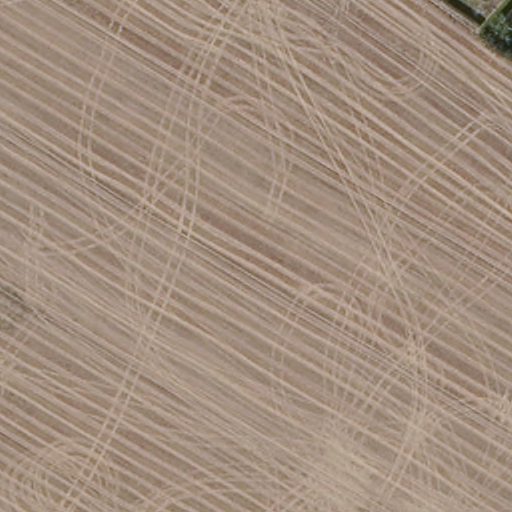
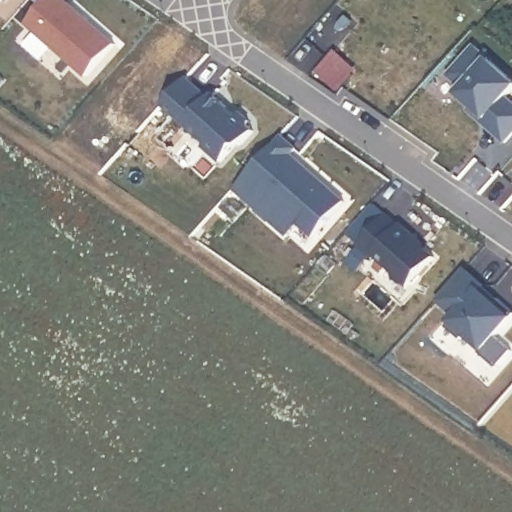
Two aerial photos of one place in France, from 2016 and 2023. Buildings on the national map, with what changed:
new [(0,2),(0,0),(2,0),(0,2)]
new [(116,43),(86,78),(23,25),(46,0),(68,0),(116,43)]
new [(512,91),(507,96),(512,101),(512,134),(504,143),(480,122),(484,117),(456,92),(461,87),(448,76),(475,47),(512,77),(512,91)]
new [(211,92),(233,110),(236,107),(257,125),(221,164),(201,149),(205,144),(162,106),(190,74),(211,92)]
new [(297,148),(289,157),(320,185),(323,182),(344,201),(315,235),(284,209),(273,220),(236,189),(282,135),(297,148)]
new [(436,255),(408,288),(358,244),(387,212),(436,255)]
new [(512,313),(510,315),(512,317),(512,321),(498,336),(511,349),(497,365),(483,351),(465,335),(459,340),(445,327),(456,315),(439,301),(466,270),(512,309),(512,313)]

